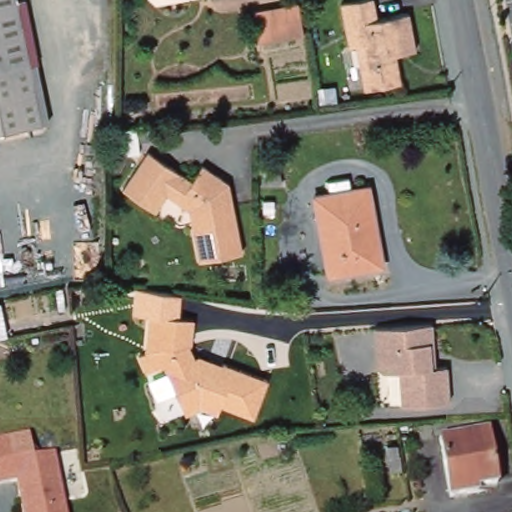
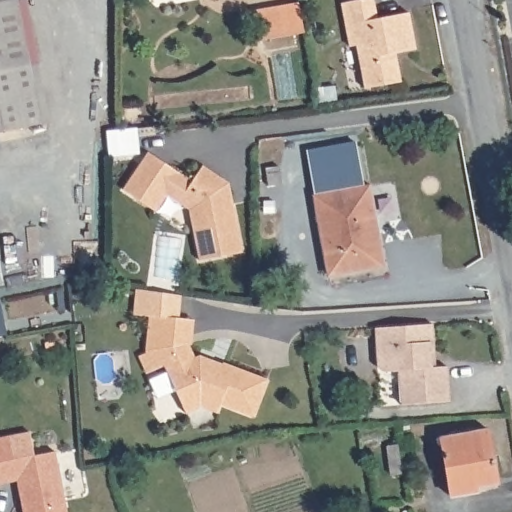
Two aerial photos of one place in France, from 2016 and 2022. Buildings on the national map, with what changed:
unchanged [(0,71),(0,0),(18,0),(31,65),(0,71)]
unchanged [(380,0),(382,18),(409,14),(412,14),(413,21),(418,55),(400,57),(403,86),(366,90),(360,43),(352,43),(347,0),(380,0)]
unchanged [(257,12),(302,5),(307,35),(262,41),(257,12)]
unchanged [(0,133),(0,71),(31,65),(43,126),(0,133)]
new [(138,120),(141,144),(120,148),(116,123),(138,120)]
new [(317,194),(310,150),(354,143),(363,187),(317,194)]
unchanged [(199,262),(190,212),(165,196),(153,212),(120,191),(146,154),(190,182),(201,166),(229,188),(243,256),(199,262)]
unchanged [(375,266),(331,273),(317,194),(373,186),(381,235),(386,264),(375,266)]
unchanged [(219,406),(214,416),(197,409),(185,415),(164,368),(151,371),(145,353),(148,318),(192,323),(190,354),(268,381),(253,417),(219,406)]
unchanged [(401,407),(399,372),(378,372),(375,330),(432,328),(435,369),(447,369),(449,404),(401,407)]
unchanged [(490,425),(502,487),(453,495),(440,432),(490,425)]
unchanged [(392,432),(399,462),(387,464),(382,435),(392,432)]
unchanged [(11,461),(52,453),(64,512),(21,512),(15,482),(0,485),(0,439),(6,438),(11,461)]

